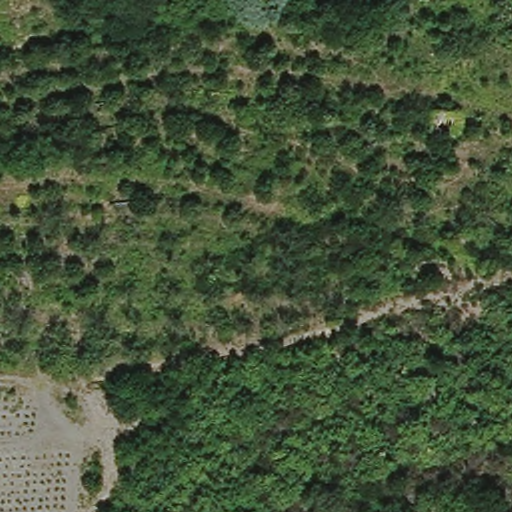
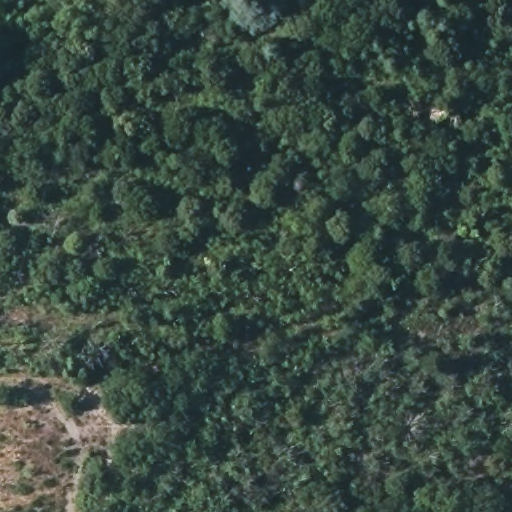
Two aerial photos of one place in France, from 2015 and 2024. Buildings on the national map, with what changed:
unchanged [(432,134),(431,114),(447,113),(447,120),(448,132),(432,134)]

